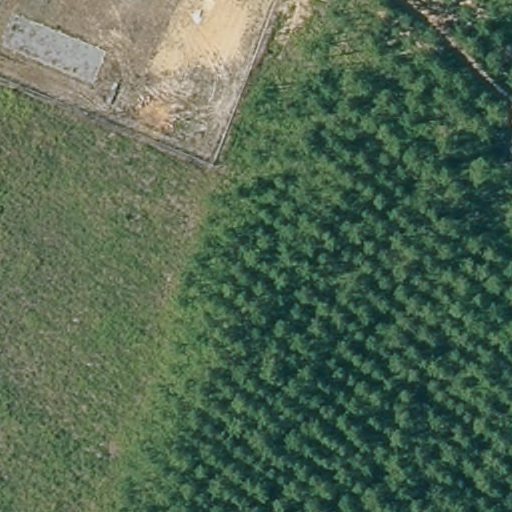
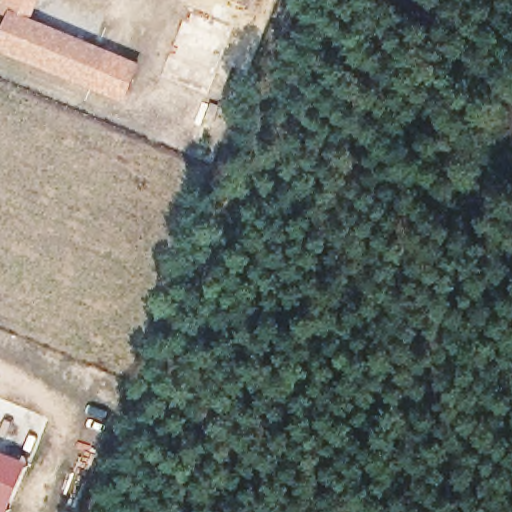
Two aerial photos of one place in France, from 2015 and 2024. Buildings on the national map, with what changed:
new [(0,9),(0,6),(2,0),(41,0),(34,18),(142,64),(127,102),(0,48),(0,42),(12,14),(0,9)]
new [(31,462),(10,512),(0,512),(0,449),(31,462)]

